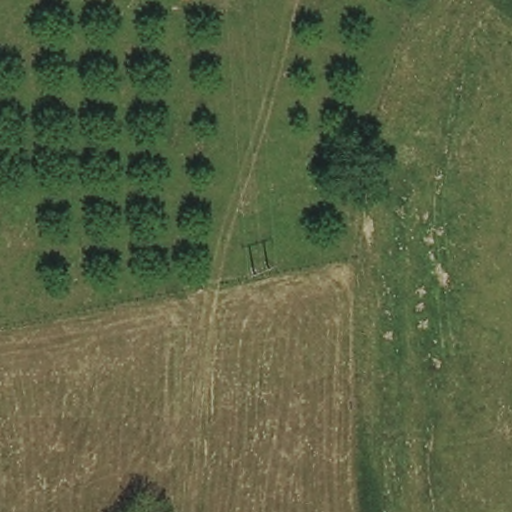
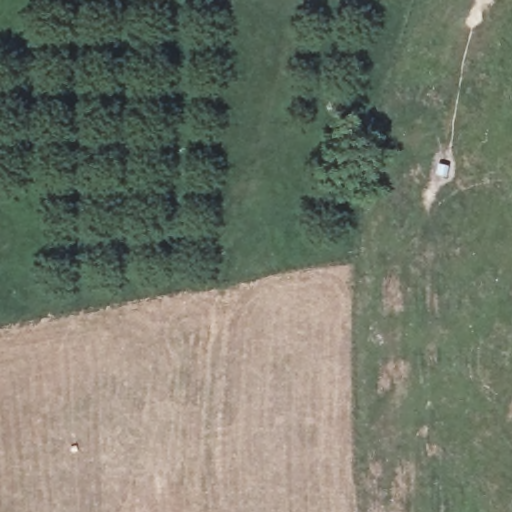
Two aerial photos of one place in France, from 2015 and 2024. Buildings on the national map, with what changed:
[]

